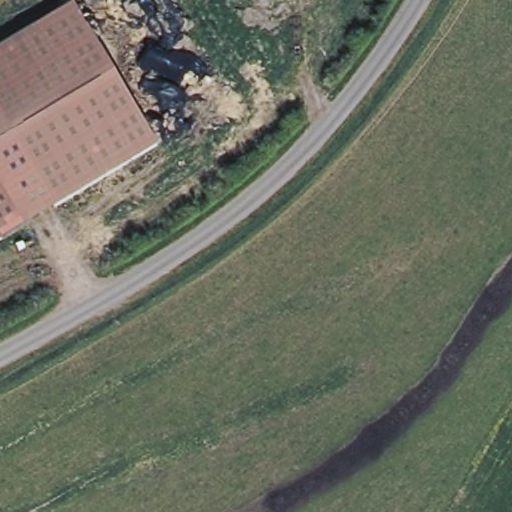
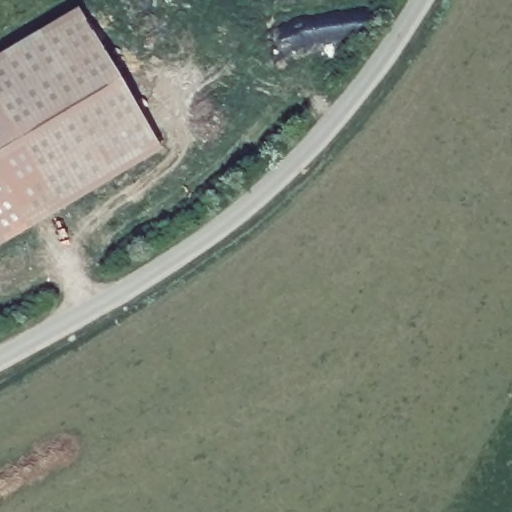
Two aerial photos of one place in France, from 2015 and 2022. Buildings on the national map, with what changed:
unchanged [(164,150),(35,227),(0,169),(0,59),(80,11),(164,150)]
unchanged [(0,248),(0,169),(35,227),(0,248)]

